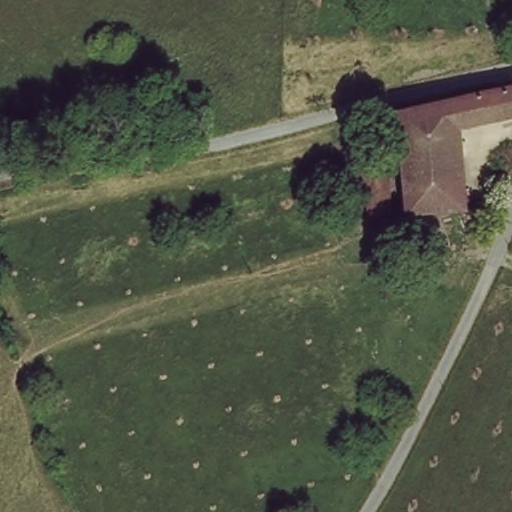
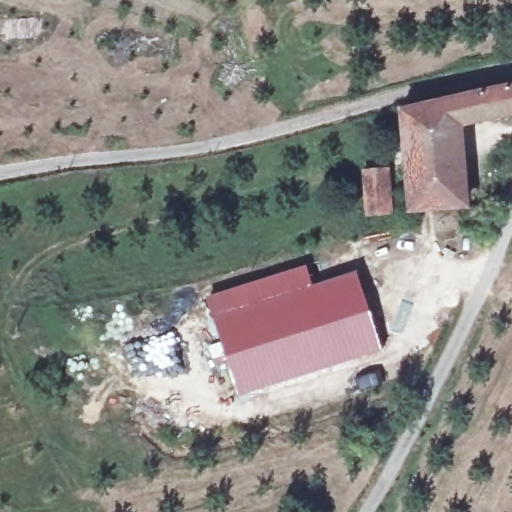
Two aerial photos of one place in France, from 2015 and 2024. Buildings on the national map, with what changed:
unchanged [(404,120),(404,112),(512,80),(512,106),(462,121),(461,191),(409,204),(404,120)]
new [(394,166),(397,212),(365,217),(363,170),(394,166)]
new [(355,272),(382,350),(237,396),(212,317),(355,272)]

